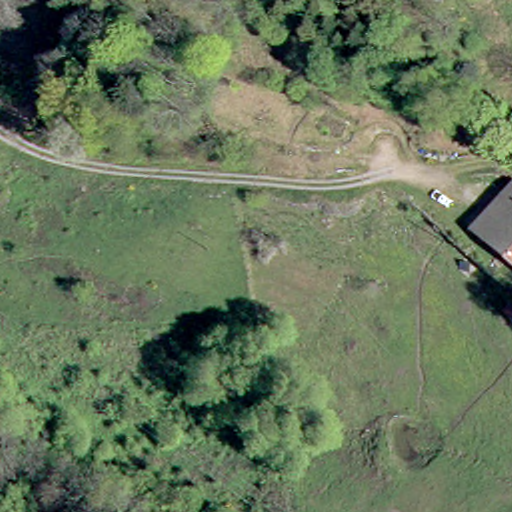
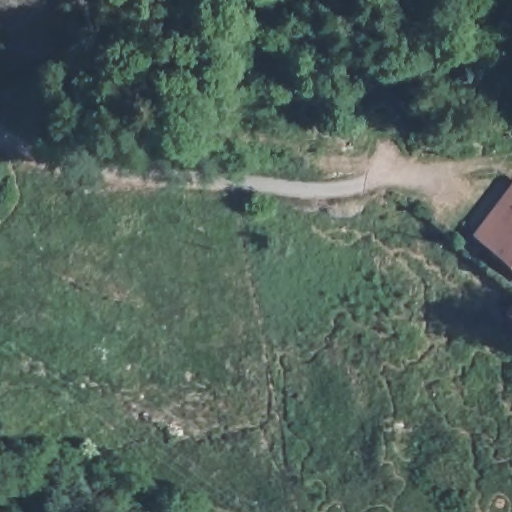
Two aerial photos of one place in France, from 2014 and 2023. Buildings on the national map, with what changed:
unchanged [(469,231),(512,182),(512,268),(469,231)]

